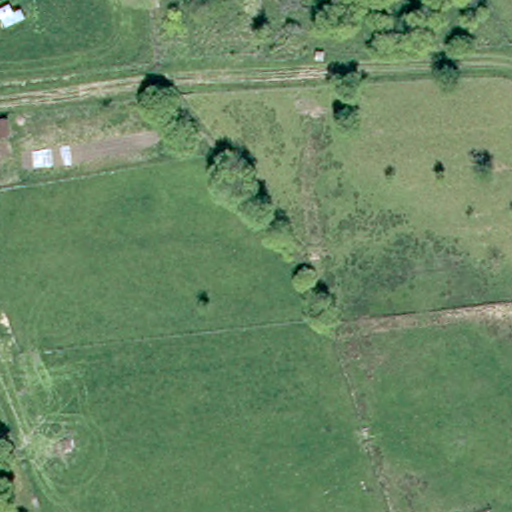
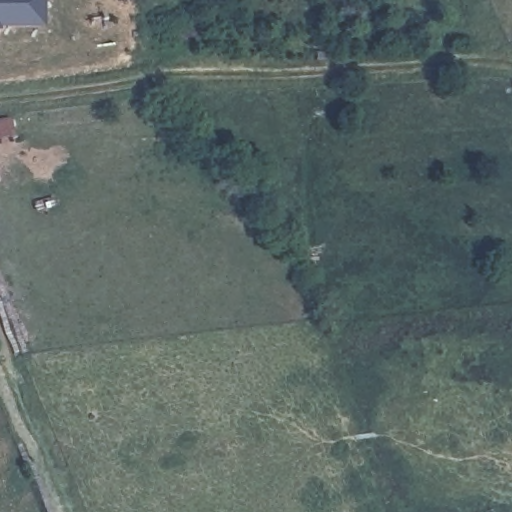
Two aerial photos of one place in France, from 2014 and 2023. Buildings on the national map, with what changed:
new [(0,25),(0,0),(42,0),(41,26),(0,25)]
demolished [(11,12),(1,18),(0,16),(0,13),(10,9),(11,12)]
unchanged [(10,135),(0,135),(0,117),(7,116),(10,135)]

